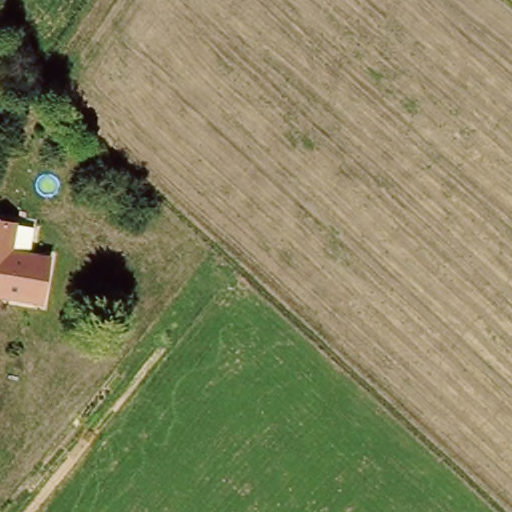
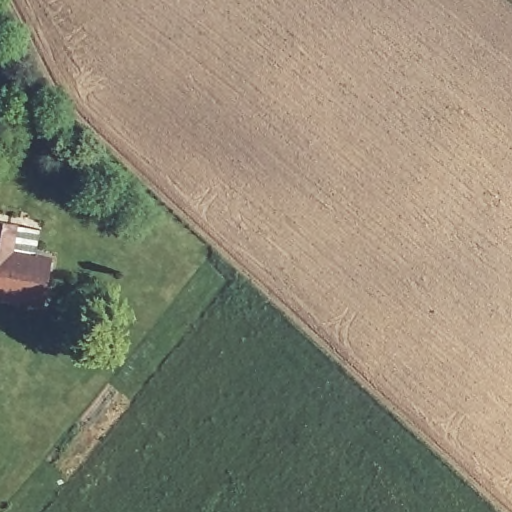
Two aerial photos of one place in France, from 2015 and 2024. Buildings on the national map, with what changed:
unchanged [(0,296),(0,219),(18,223),(12,251),(46,259),(36,304),(0,296)]

